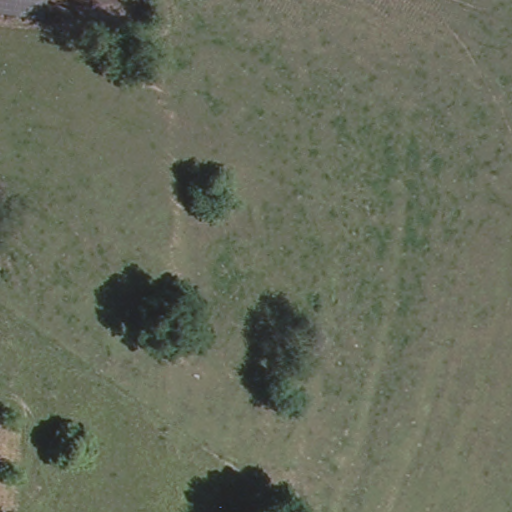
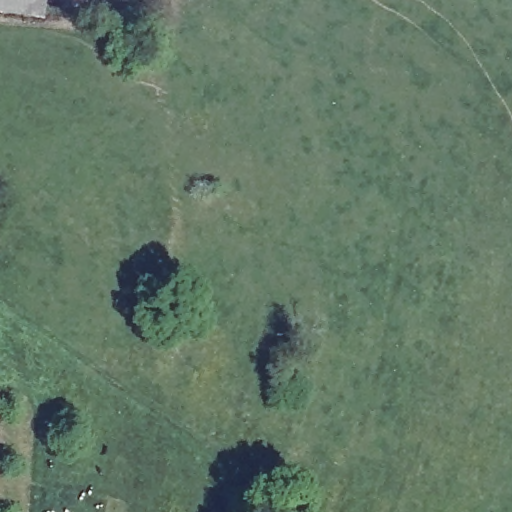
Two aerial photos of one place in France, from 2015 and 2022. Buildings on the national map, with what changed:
unchanged [(43,12),(0,5),(0,0),(45,0),(43,12)]

